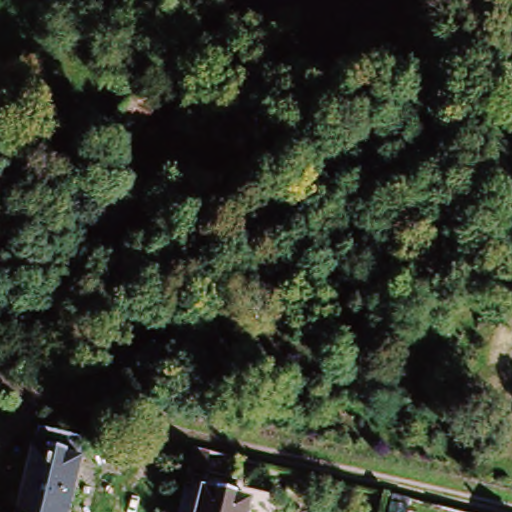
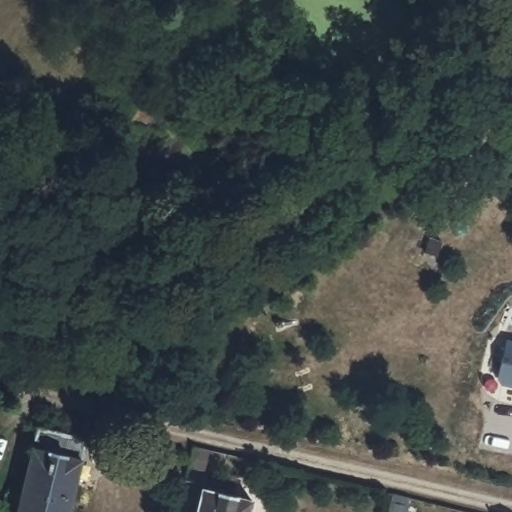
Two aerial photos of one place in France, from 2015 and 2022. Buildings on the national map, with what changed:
unchanged [(107,158),(91,148),(98,136),(89,130),(99,114),(109,119),(116,108),(133,120),(107,158)]
new [(506,344),(512,346),(512,390),(501,387),(497,381),(506,344)]
unchanged [(83,459),(69,512),(14,512),(31,446),(83,459)]
unchanged [(259,502),(256,512),(204,512),(210,489),(259,502)]
unchanged [(407,510),(406,512),(392,512),(393,506),(407,510)]

